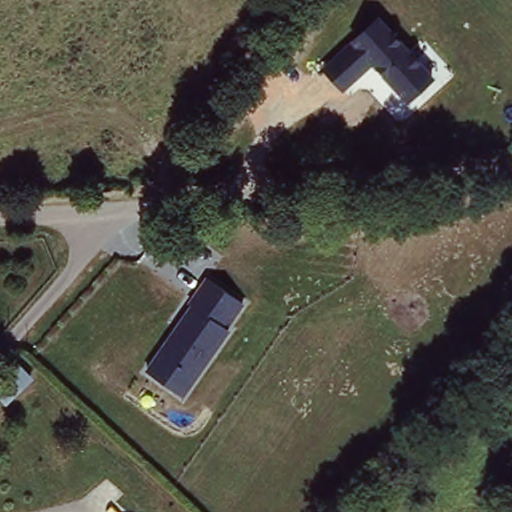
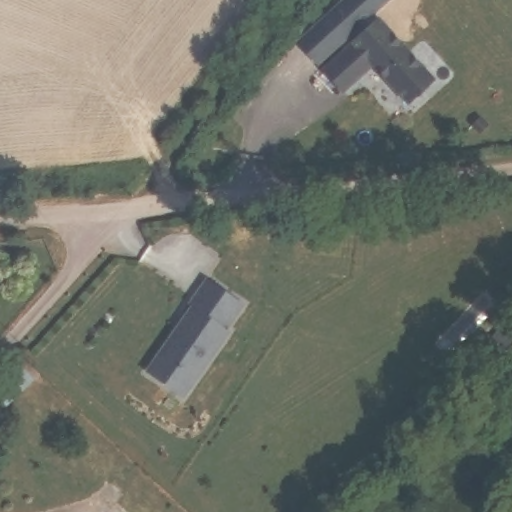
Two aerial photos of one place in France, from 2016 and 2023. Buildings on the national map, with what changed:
unchanged [(408,105),(369,66),(343,92),(321,68),(378,16),(434,80),(408,105)]
unchanged [(184,397),(146,370),(206,279),(244,303),(184,397)]

